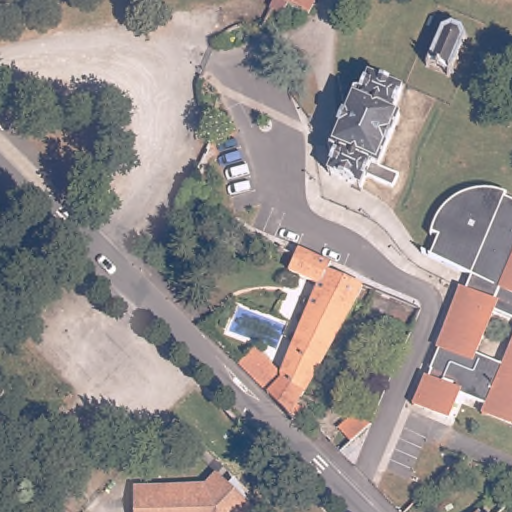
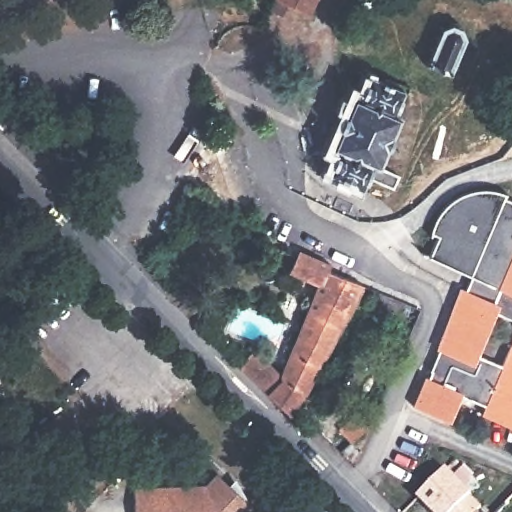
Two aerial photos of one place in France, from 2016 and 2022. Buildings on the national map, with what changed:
unchanged [(285,9),(273,4),(275,0),(289,0),(285,9)]
unchanged [(290,6),(293,0),(316,0),(312,8),(306,5),(303,12),(290,6)]
unchanged [(453,71),(450,69),(450,67),(433,59),(432,62),(430,61),(431,59),(428,57),(430,55),(432,56),(436,46),(434,44),(435,42),(438,43),(442,34),(440,32),(440,29),(443,30),(446,24),(445,21),(447,19),(449,22),(456,19),(455,17),(457,16),(458,18),(461,14),(465,16),(463,20),(464,21),(467,20),(468,23),(465,24),(467,29),(470,29),(471,32),(467,34),(465,39),(467,40),(466,44),(464,43),(460,52),(463,53),(461,56),(459,55),(455,64),(458,66),(456,69),(455,68),(453,71)]
unchanged [(391,182),(365,171),(360,183),(327,168),(335,152),(331,149),(334,143),(332,142),(357,84),(361,86),(368,69),(401,85),(392,107),(399,110),(378,162),(396,170),(391,182)]
unchanged [(427,377),(440,347),(438,346),(457,299),(462,288),(465,289),(471,275),(428,257),(437,236),(431,233),(435,222),(440,213),(443,207),(455,198),(465,193),(472,191),(481,190),(494,191),(505,194),(504,197),(512,200),(512,424),(482,412),(485,405),(457,394),(447,417),(414,403),(425,376),(427,377)]
unchanged [(258,345),(276,363),(285,372),(322,280),(293,267),(300,250),(302,246),(335,259),(350,265),(347,272),(366,280),(308,390),(307,390),(305,393),(299,404),(294,412),(260,378),(242,361),(258,345)]
new [(471,512),(431,512),(417,498),(449,466),(475,492),(485,507),(480,512),(476,507),(471,512)]
unchanged [(205,485),(215,475),(250,508),(246,512),(134,512),(134,487),(205,485)]
unchanged [(480,512),(471,512),(476,507),(480,512)]

